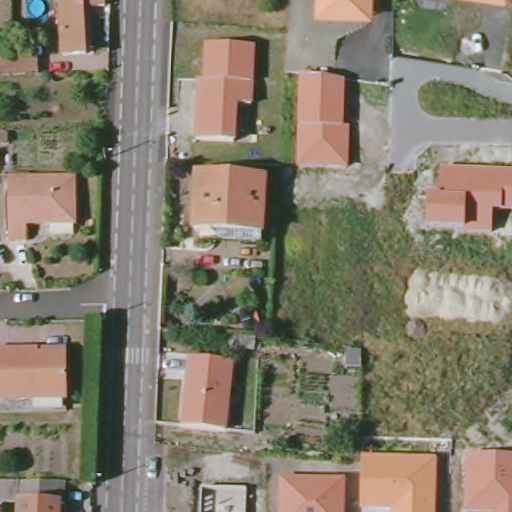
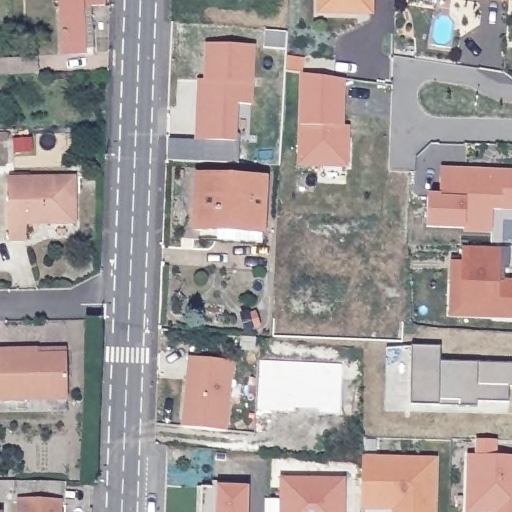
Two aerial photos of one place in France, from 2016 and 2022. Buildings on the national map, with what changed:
unchanged [(60,7),(63,7),(63,0),(105,0),(105,6),(90,6),(82,7),(84,48),(84,54),(63,55),(60,7)]
unchanged [(316,14),(317,0),(374,0),(374,16),(316,14)]
unchanged [(497,0),(506,0),(506,2),(497,0)]
unchanged [(253,106),(243,106),(240,144),(196,142),(198,81),(203,81),(206,43),(259,45),(253,106)]
unchanged [(35,70),(0,73),(0,56),(33,53),(35,70)]
unchanged [(299,75),(345,79),(343,126),(349,128),(347,168),(297,167),(299,75)]
unchanged [(428,193),(439,193),(440,165),(512,168),(512,211),(493,211),(493,233),(465,229),(426,230),(428,193)]
unchanged [(198,227),(198,173),(267,176),(266,230),(198,227)]
unchanged [(25,224),(25,239),(9,239),(8,177),(65,176),(74,176),(74,193),(74,223),(25,224)]
new [(447,268),(456,268),(456,253),(503,254),(502,275),(498,275),(497,287),(512,287),(512,324),(484,323),(484,315),(454,314),(455,287),(446,287),(447,268)]
unchanged [(0,350),(38,350),(68,349),(68,354),(68,399),(0,399),(0,350)]
new [(405,352),(434,352),(434,367),(512,369),(512,393),(503,393),(503,409),(471,408),(471,413),(452,413),(452,408),(433,407),(433,412),(404,412),(405,352)]
unchanged [(230,434),(184,429),(190,359),(237,363),(230,434)]
unchanged [(361,510),(363,454),(437,457),(435,512),(392,512),(392,510),(361,510)]
unchanged [(512,455),(512,512),(465,512),(467,454),(512,455)]
unchanged [(345,476),(345,512),(278,512),(279,476),(345,476)]
unchanged [(14,502),(4,502),(0,501),(0,482),(5,482),(15,482),(61,482),(60,504),(60,512),(19,512),(19,502),(14,502)]
unchanged [(246,489),(245,512),(199,512),(201,486),(246,489)]
new [(279,506),(278,512),(262,512),(263,506),(279,506)]

